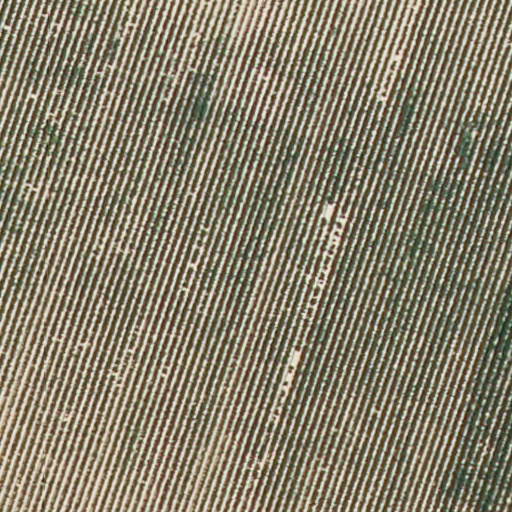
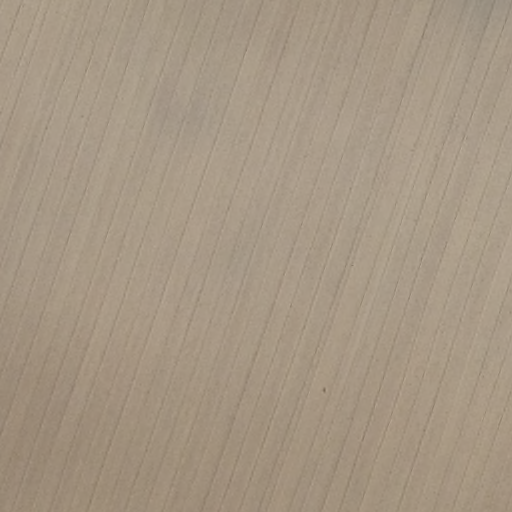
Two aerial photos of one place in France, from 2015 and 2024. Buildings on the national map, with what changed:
[]

